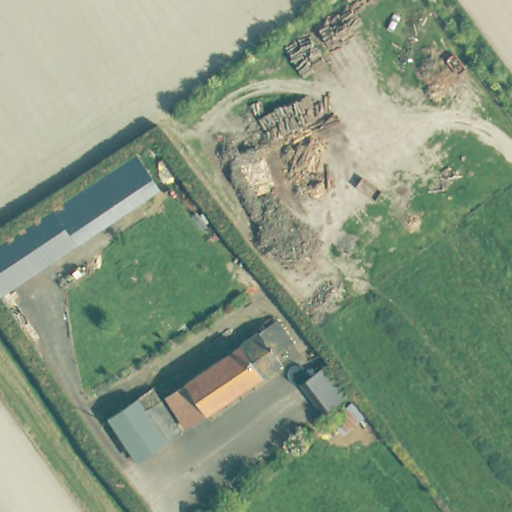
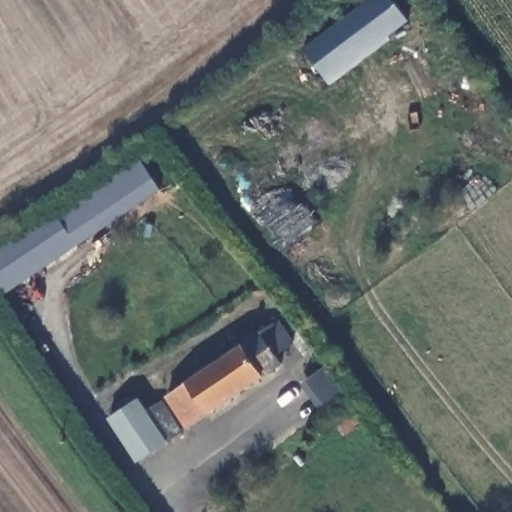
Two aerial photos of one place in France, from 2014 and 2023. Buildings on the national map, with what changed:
new [(364,0),(393,0),(408,20),(385,35),(389,40),(330,84),(303,46),(364,0)]
unchanged [(136,154),(160,189),(0,296),(0,244),(136,154)]
unchanged [(294,345),(275,358),(281,368),(264,378),(191,430),(166,440),(139,462),(108,421),(140,401),(150,417),(169,400),(242,345),(259,335),(280,323),(294,345)]

